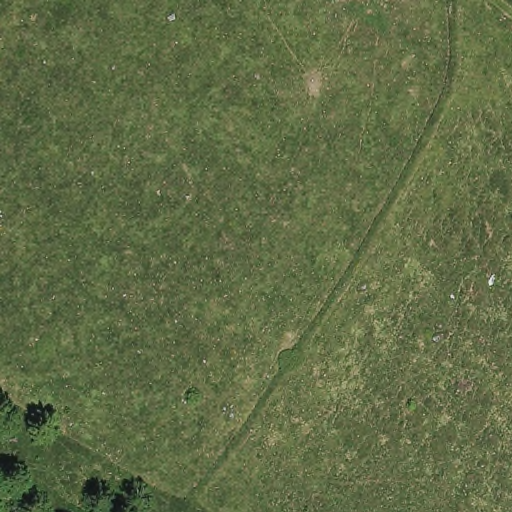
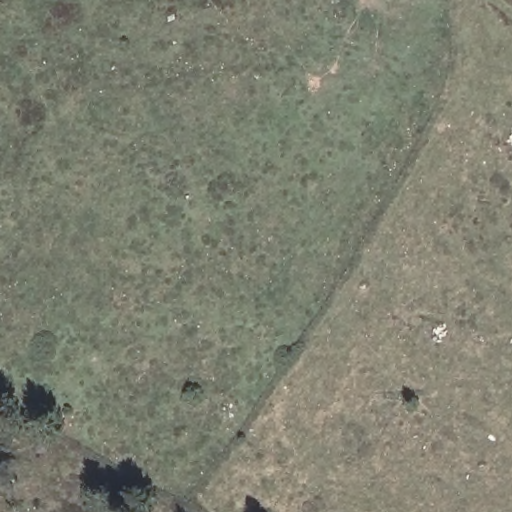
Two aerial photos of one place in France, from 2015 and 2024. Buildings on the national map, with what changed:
[]

